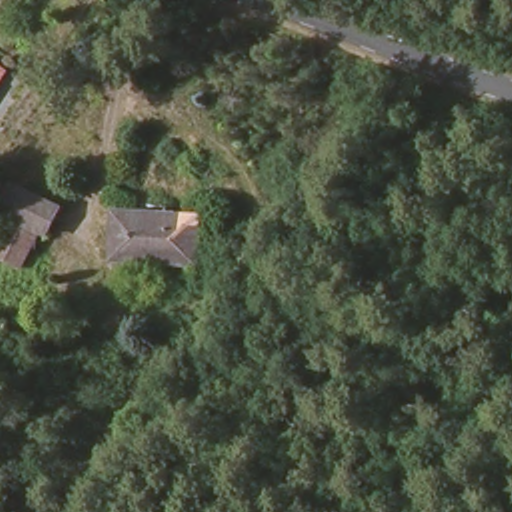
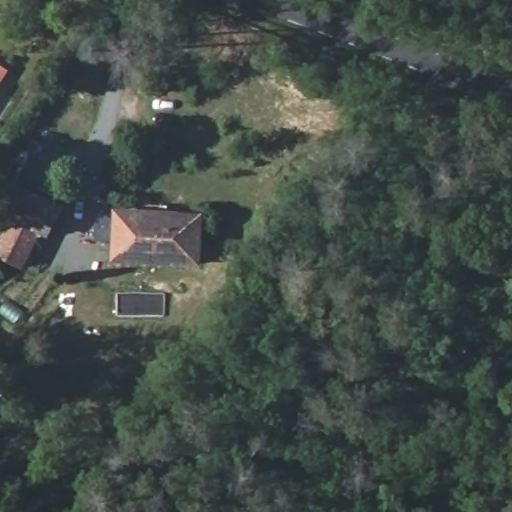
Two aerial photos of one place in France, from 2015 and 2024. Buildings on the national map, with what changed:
unchanged [(0,78),(0,72),(2,74),(0,78)]
unchanged [(46,237),(33,254),(11,240),(22,224),(7,212),(24,187),(68,213),(51,238),(46,237)]
unchanged [(199,263),(117,261),(119,215),(200,215),(199,263)]

